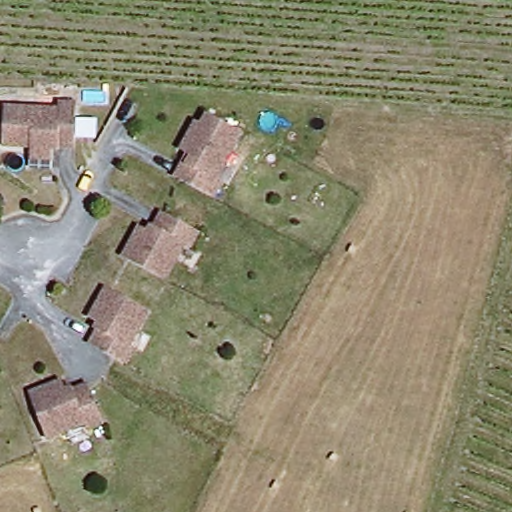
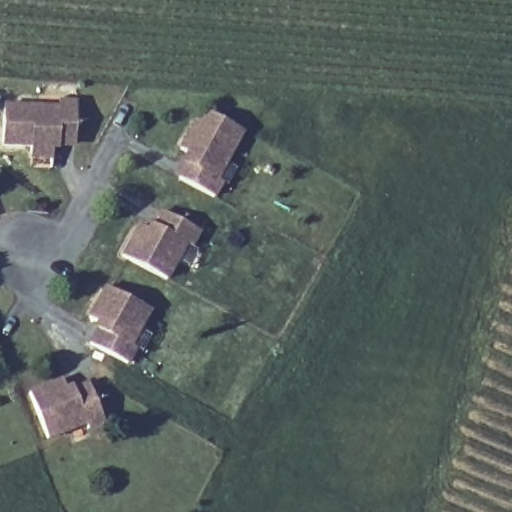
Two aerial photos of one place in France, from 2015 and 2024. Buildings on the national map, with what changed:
unchanged [(33,151),(33,143),(6,142),(8,104),(55,106),(55,99),(75,99),(75,141),(60,139),(59,145),(47,146),(47,151),(33,151)]
unchanged [(217,195),(176,175),(187,153),(179,150),(192,123),(197,126),(203,114),(240,132),(217,179),(224,183),(217,195)]
unchanged [(157,211),(199,234),(193,245),(188,242),(169,280),(125,257),(140,229),(146,232),(157,211)]
unchanged [(147,310),(127,350),(135,353),(130,364),(85,341),(93,319),(86,316),(102,286),(147,310)]
unchanged [(85,379),(100,415),(87,421),(85,417),(47,433),(30,391),(65,376),(69,385),(85,379)]

